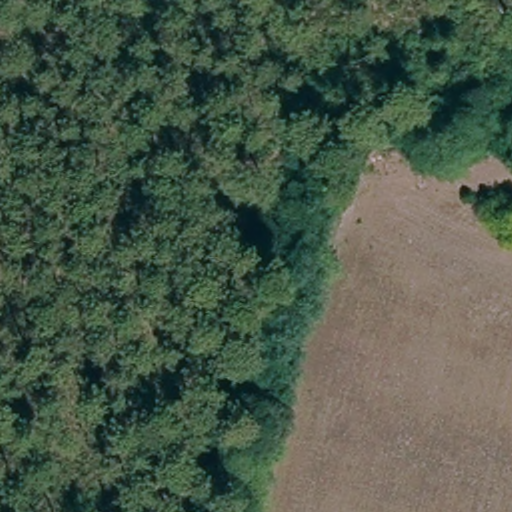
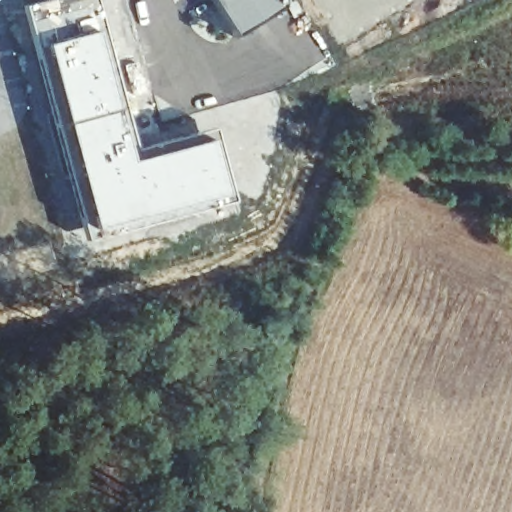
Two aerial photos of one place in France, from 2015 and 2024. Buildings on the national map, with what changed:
new [(91,0),(109,75),(107,76),(129,157),(210,136),(226,196),(90,231),(38,46),(33,47),(19,5),(36,0),(91,0)]
new [(235,35),(213,0),(279,0),(281,5),(235,35)]

